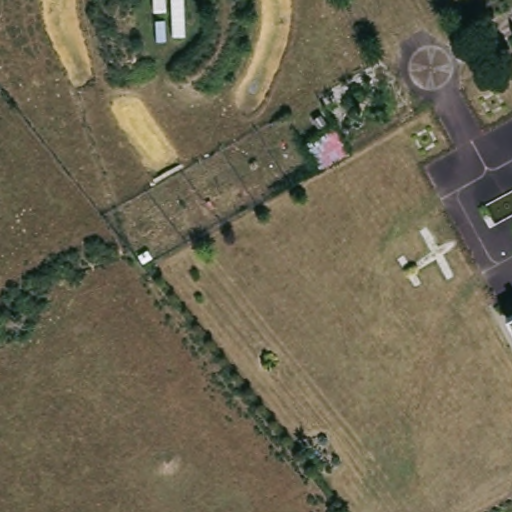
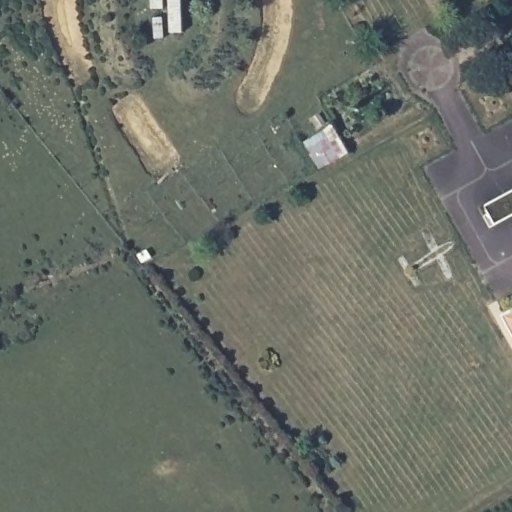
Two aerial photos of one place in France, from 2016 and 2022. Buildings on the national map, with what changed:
unchanged [(180,0),(182,35),(154,41),(152,0),(180,0)]
unchanged [(298,145),(308,140),(292,110),(312,98),(344,157),(315,172),(298,145)]
unchanged [(505,319),(512,316),(512,331),(505,319)]

